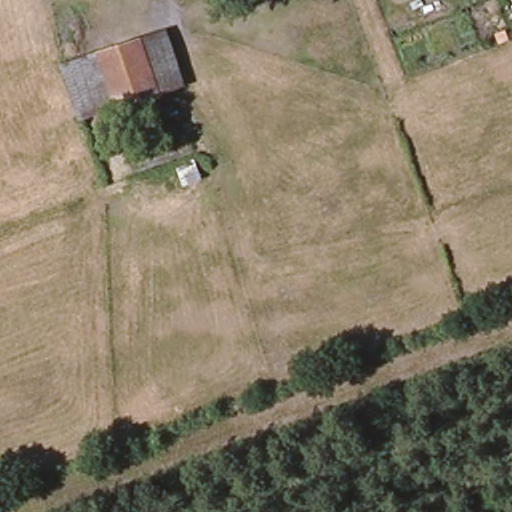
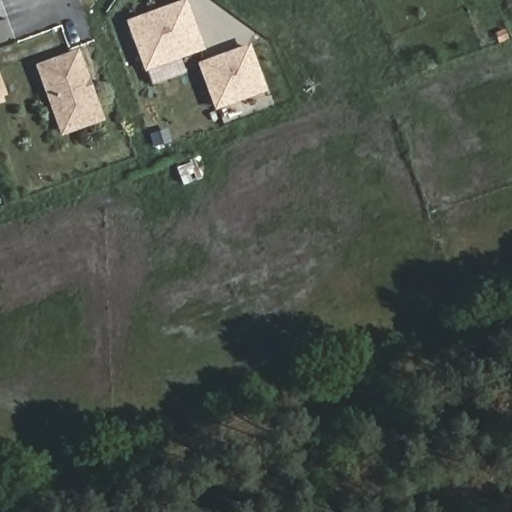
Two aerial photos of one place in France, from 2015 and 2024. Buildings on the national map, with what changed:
new [(203,47),(148,67),(131,22),(186,2),(203,47)]
demolished [(134,39),(154,95),(84,120),(65,65),(134,39)]
new [(104,120),(60,136),(34,64),(79,49),(104,120)]
new [(254,49),(270,90),(222,107),(207,66),(254,49)]
new [(6,94),(5,95),(6,101),(0,104),(0,78),(6,94)]

